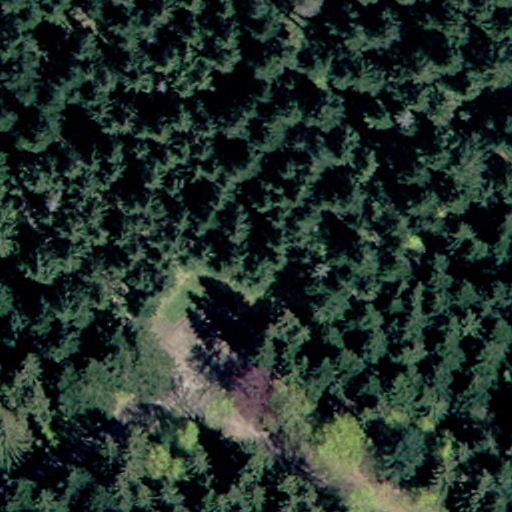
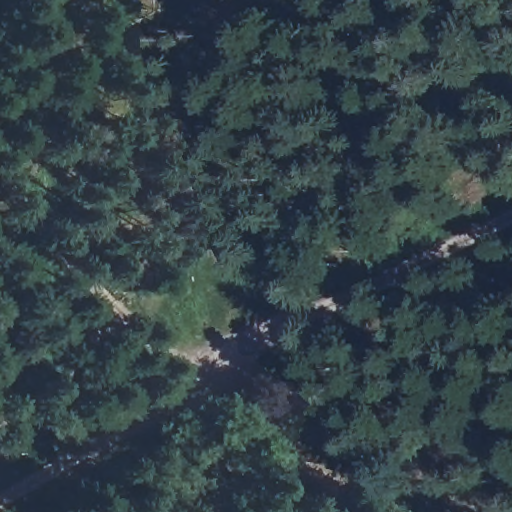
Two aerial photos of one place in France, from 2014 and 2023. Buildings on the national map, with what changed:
unchanged [(196,309),(213,328),(191,346),(173,327),(196,309)]

